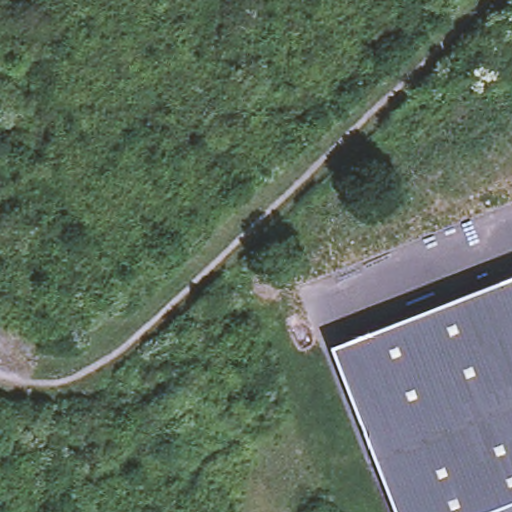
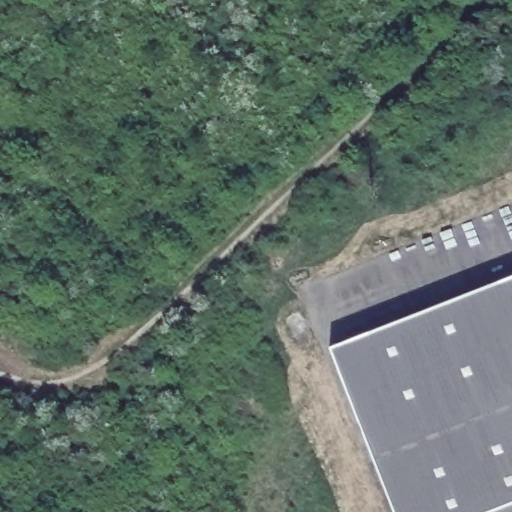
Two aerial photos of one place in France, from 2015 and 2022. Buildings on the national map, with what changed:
unchanged [(512,272),(512,336),(490,281),(512,272)]
unchanged [(512,336),(512,499),(478,512),(390,512),(325,346),(490,281),(512,336)]
unchanged [(478,512),(512,499),(512,512),(478,512)]

